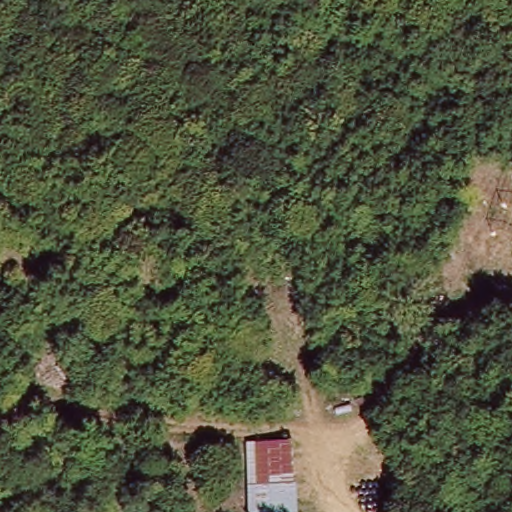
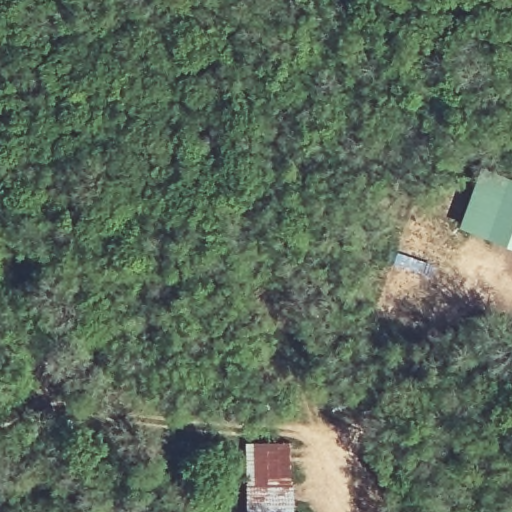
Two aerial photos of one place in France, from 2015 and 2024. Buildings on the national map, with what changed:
new [(512,248),(457,227),(480,167),(512,179),(512,248)]
unchanged [(295,512),(249,512),(247,442),(291,442),(292,485),(295,486),(295,512)]

